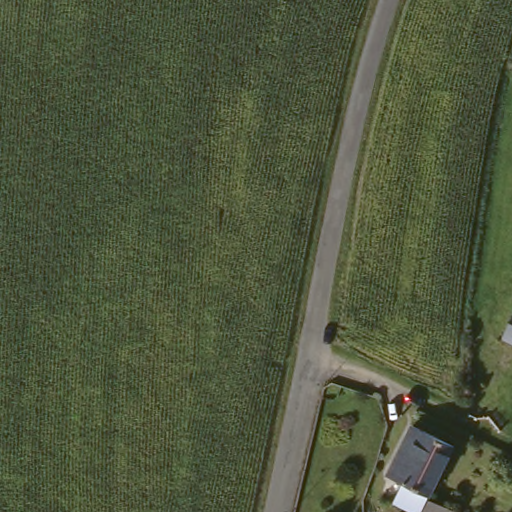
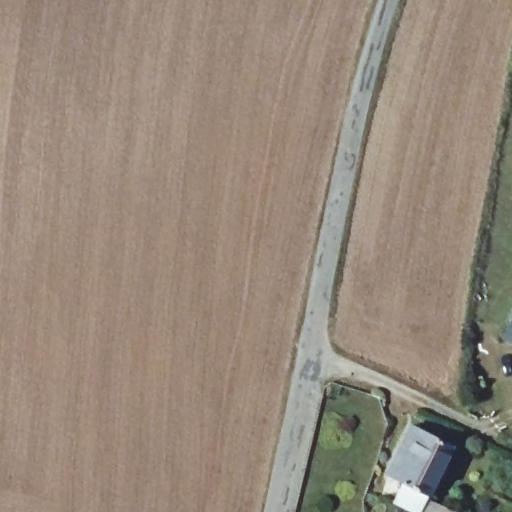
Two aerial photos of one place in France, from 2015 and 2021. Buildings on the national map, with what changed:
unchanged [(506,333),(512,320),(512,337),(506,333)]
unchanged [(395,476),(381,469),(400,430),(441,447),(421,497),(452,512),(398,512),(383,505),(395,476)]

